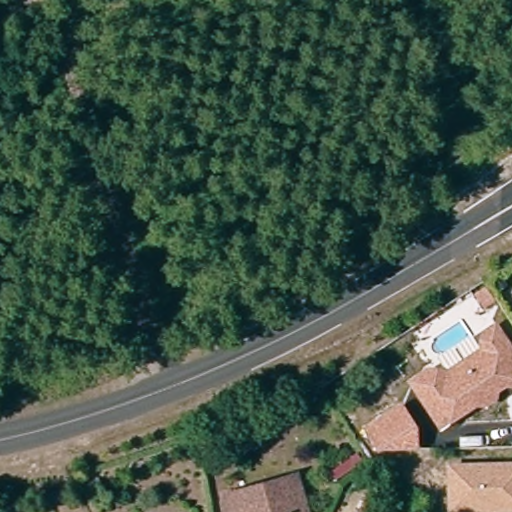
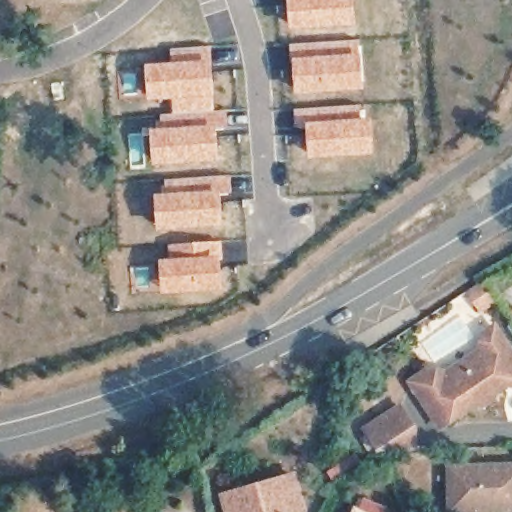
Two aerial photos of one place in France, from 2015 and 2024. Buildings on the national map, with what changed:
new [(289,29),(287,0),(353,0),(355,25),(289,29)]
new [(359,39),(362,89),(294,94),(289,44),(359,39)]
new [(170,62),(169,49),(210,47),(214,111),(172,112),(172,100),(147,101),(145,64),(170,62)]
new [(362,103),(363,118),(371,117),(373,155),(307,159),(305,127),(294,127),(293,108),(362,103)]
new [(159,127),(159,114),(172,112),(214,111),(226,110),(227,128),(216,129),(218,161),(151,166),(149,128),(159,127)]
new [(164,192),(163,179),(230,175),(231,194),(221,195),(222,226),(156,232),(153,194),(164,192)]
new [(168,258),(167,244),(220,241),(222,291),(160,294),(158,259),(168,258)]
unchanged [(499,388),(498,395),(487,402),(480,401),(446,424),(416,380),(433,368),(448,372),(485,347),(488,332),(498,325),(512,345),(512,381),(511,380),(499,388)]
unchanged [(417,446),(383,447),(381,449),(366,427),(401,403),(416,425),(417,446)]
unchanged [(454,489),(454,468),(512,466),(512,510),(491,511),(491,512),(455,512),(454,489)]
unchanged [(219,495),(288,473),(301,512),(224,512),(219,495)]
unchanged [(352,508),(362,512),(350,512),(352,508)]

